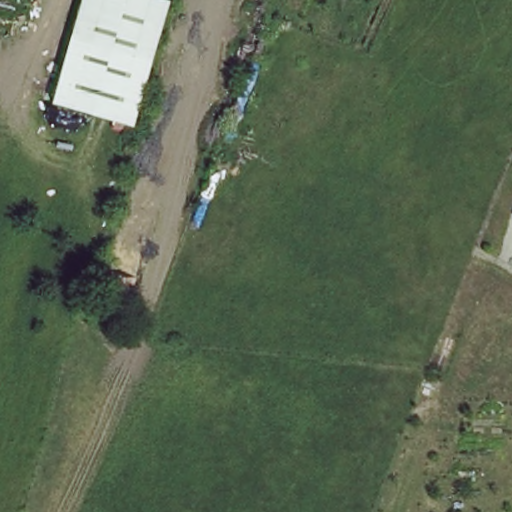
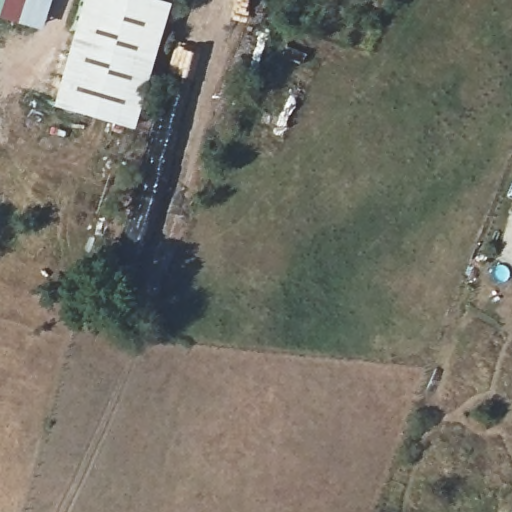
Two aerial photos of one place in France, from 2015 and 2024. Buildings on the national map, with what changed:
new [(47,0),(39,28),(0,17),(0,0),(47,0)]
unchanged [(54,103),(82,0),(170,0),(131,126),(54,103)]

